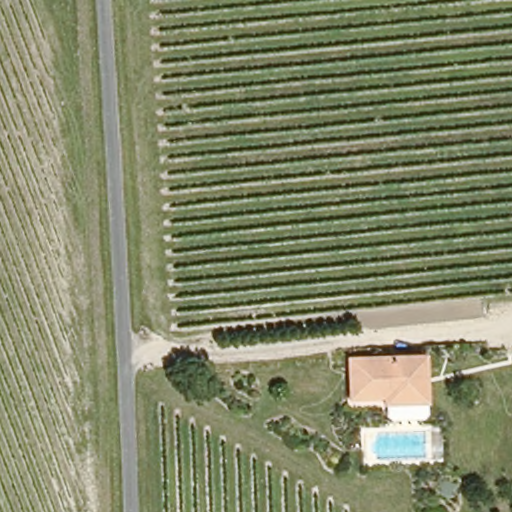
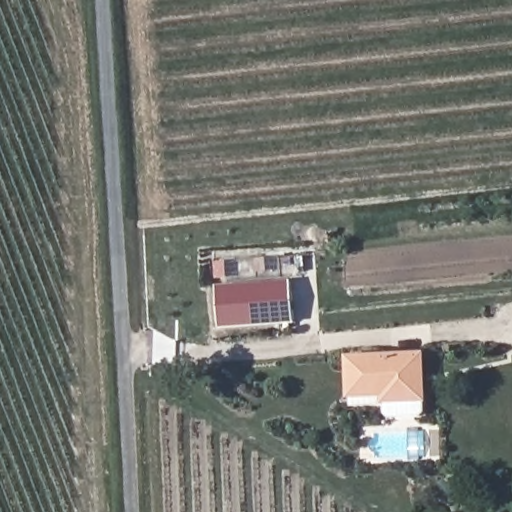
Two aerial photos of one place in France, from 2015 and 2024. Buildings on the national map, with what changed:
new [(218,329),(215,287),(290,282),(293,324),(218,329)]
unchanged [(413,403),(381,405),(380,398),(348,401),(345,362),(418,357),(419,378),(422,402),(413,403)]

